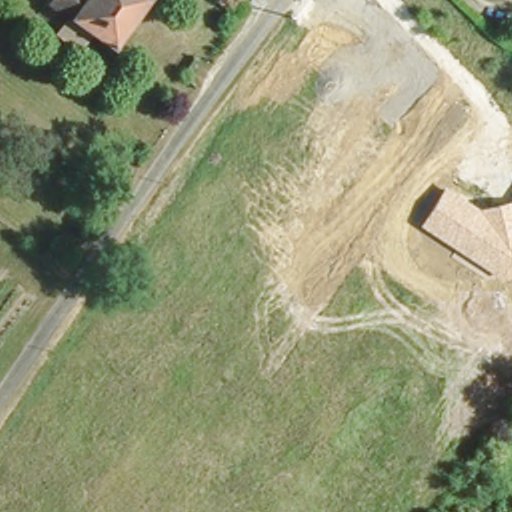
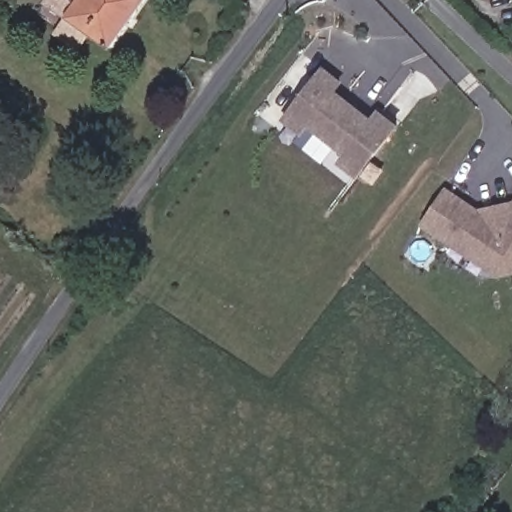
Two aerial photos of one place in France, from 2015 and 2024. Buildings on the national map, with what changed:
unchanged [(81,11),(71,5),(65,15),(45,2),(46,0),(142,0),(119,35),(81,11)]
new [(359,179),(338,163),(345,155),(307,127),(300,137),(281,120),(323,67),(342,82),(337,91),(374,118),(379,110),(400,126),(359,179)]
unchanged [(512,201),(512,275),(497,277),(420,226),(445,187),(479,209),(512,201)]

